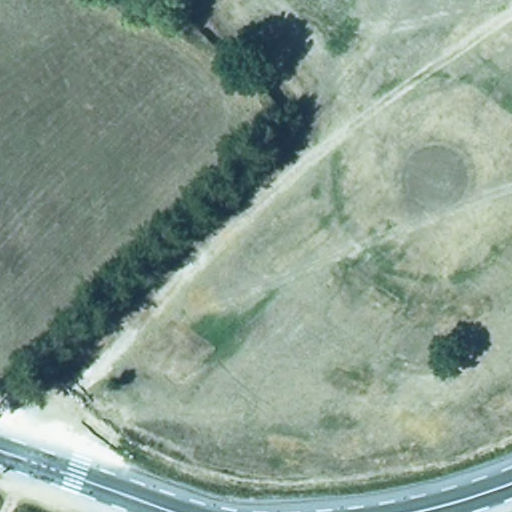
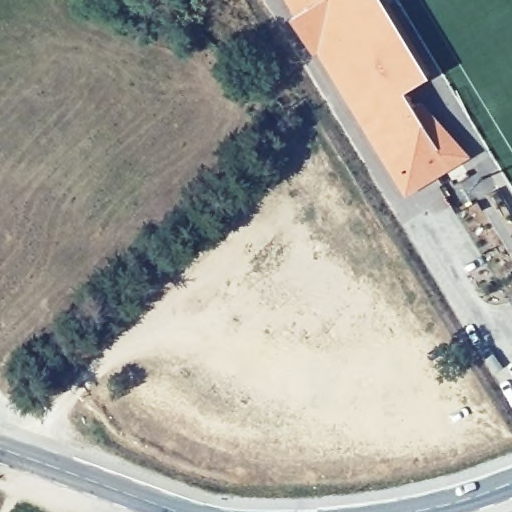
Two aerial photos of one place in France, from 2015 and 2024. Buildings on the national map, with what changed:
new [(432,74),(407,91),(415,106),(422,100),(472,156),(407,196),(318,52),(313,55),(292,17),(295,16),(285,0),(387,0),(432,74)]

